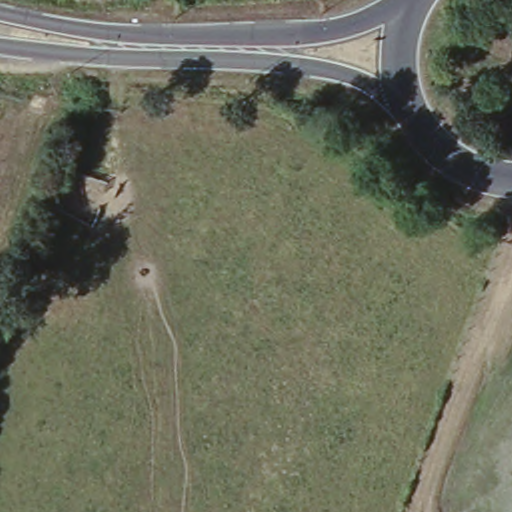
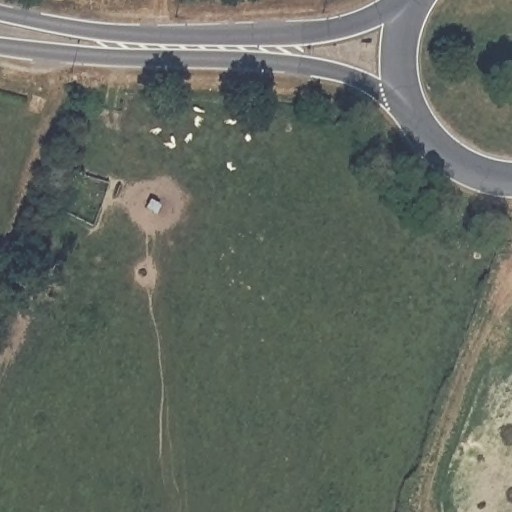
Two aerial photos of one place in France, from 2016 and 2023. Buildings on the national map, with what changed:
[]

